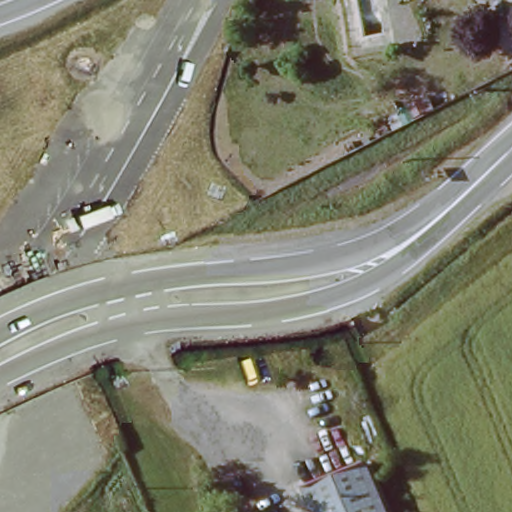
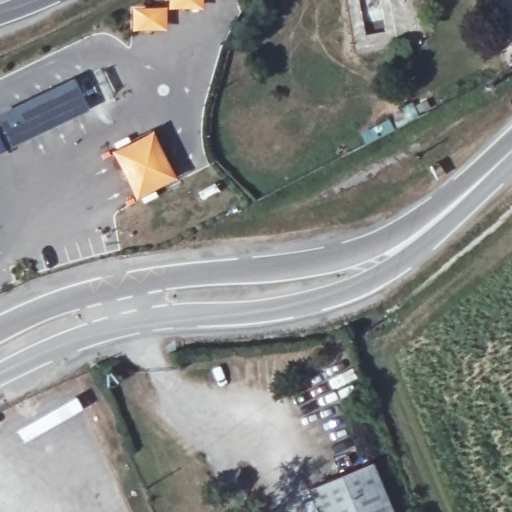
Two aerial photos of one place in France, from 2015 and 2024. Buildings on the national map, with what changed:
new [(90,111),(12,151),(0,127),(0,114),(74,78),(90,111)]
new [(153,131),(176,180),(136,201),(110,152),(153,131)]
unchanged [(388,512),(316,512),(308,492),(369,466),(388,512)]

